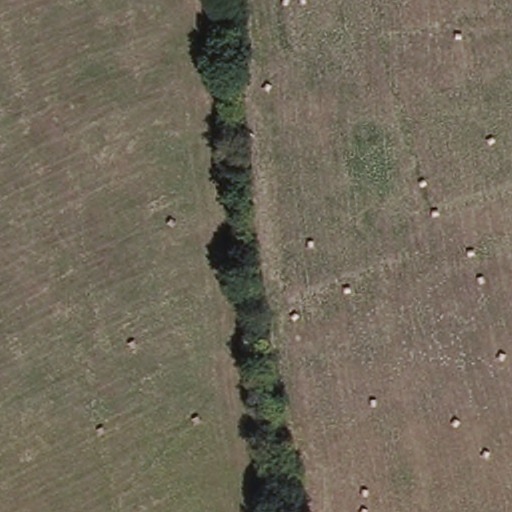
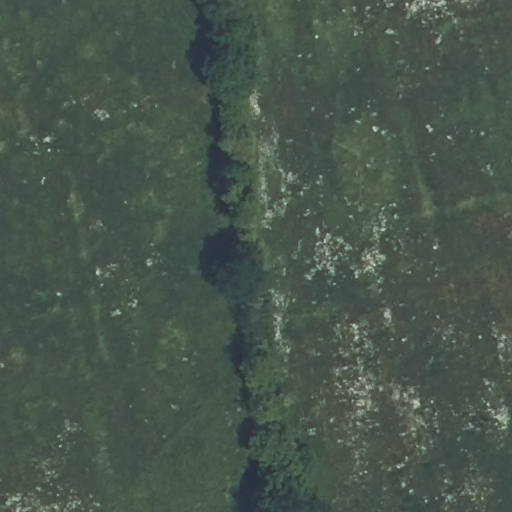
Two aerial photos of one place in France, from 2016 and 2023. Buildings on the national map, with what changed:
[]

